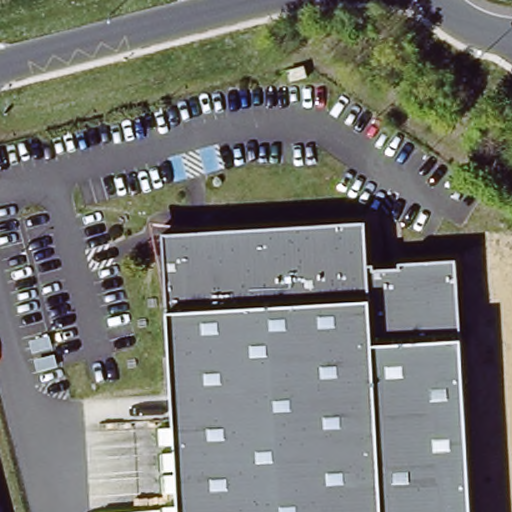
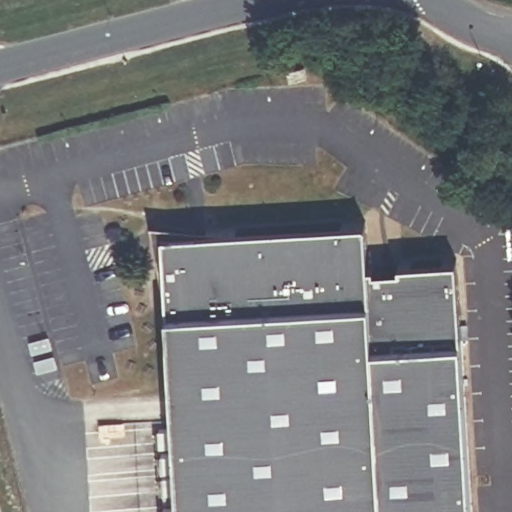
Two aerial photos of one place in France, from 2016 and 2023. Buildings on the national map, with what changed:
unchanged [(222,229),(366,220),(368,262),(375,261),(376,266),(398,265),(398,260),(457,257),(462,337),(474,512),(180,512),(167,309),(165,285),(150,220),(222,229)]

